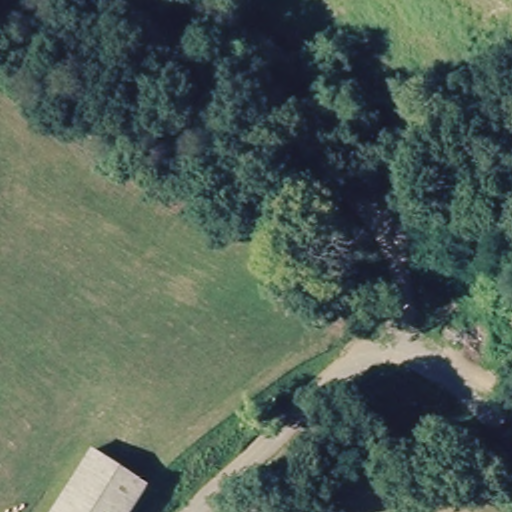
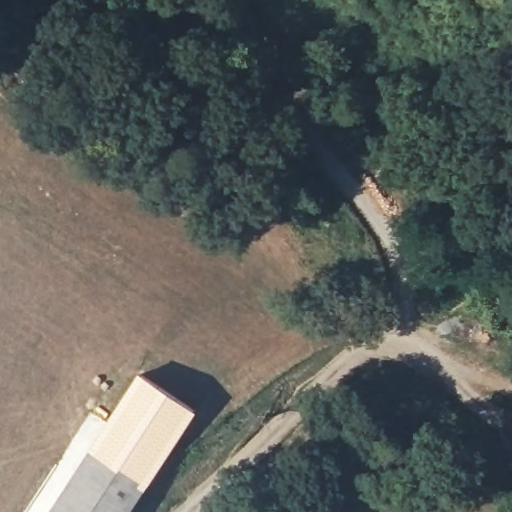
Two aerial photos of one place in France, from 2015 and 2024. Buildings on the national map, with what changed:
new [(89,447),(141,373),(197,411),(147,487),(89,447)]
unchanged [(89,447),(147,487),(131,512),(46,512),(89,447)]

